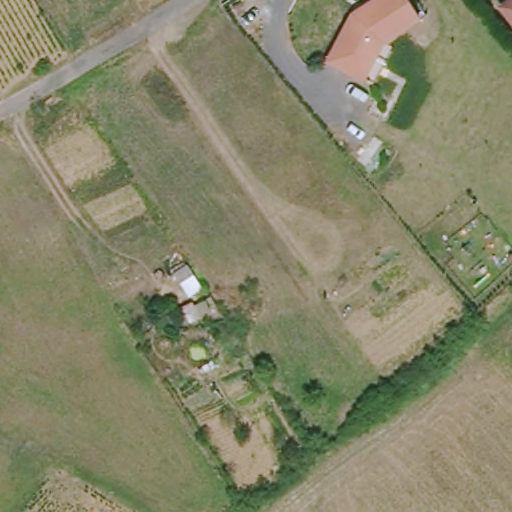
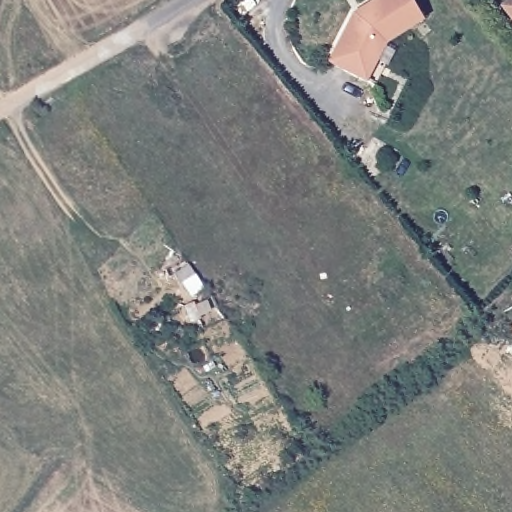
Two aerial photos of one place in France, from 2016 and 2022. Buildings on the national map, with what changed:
unchanged [(364,81),(332,64),(358,16),(383,0),(413,0),(426,20),(388,43),(370,82),(364,81)]
unchanged [(503,0),(512,0),(512,31),(493,8),(503,0)]

